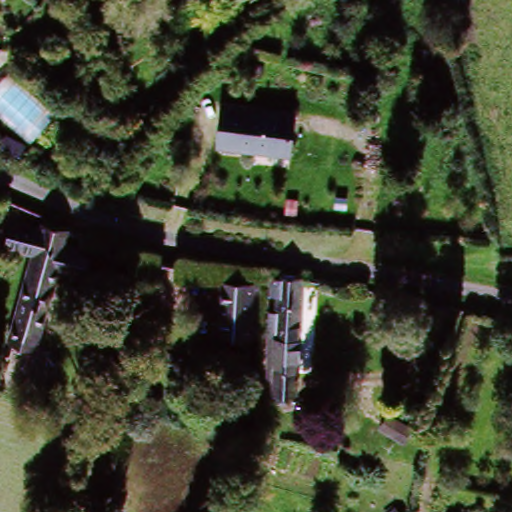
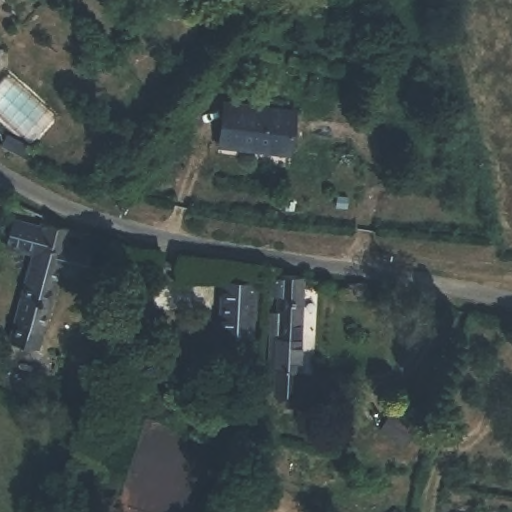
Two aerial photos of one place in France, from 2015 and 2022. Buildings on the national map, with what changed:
unchanged [(289,162),(220,157),(223,131),(224,115),(262,118),(292,120),(289,162)]
unchanged [(7,345),(30,258),(0,249),(0,237),(2,228),(37,237),(38,229),(65,237),(32,352),(7,345)]
unchanged [(247,342),(214,337),(222,287),(255,292),(247,342)]
unchanged [(272,388),(273,311),(297,312),(296,410),(270,410),(272,388)]
unchanged [(95,363),(78,358),(86,331),(103,335),(95,363)]

